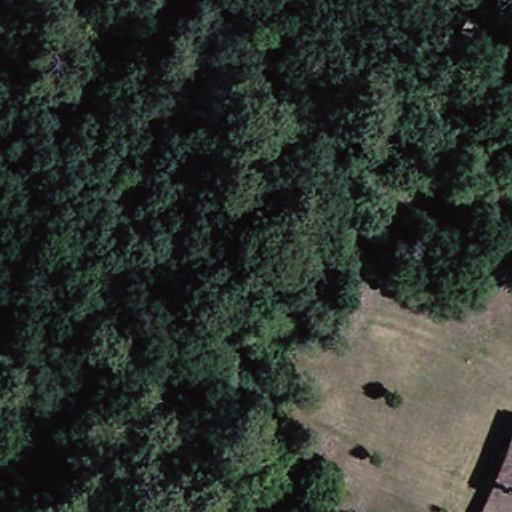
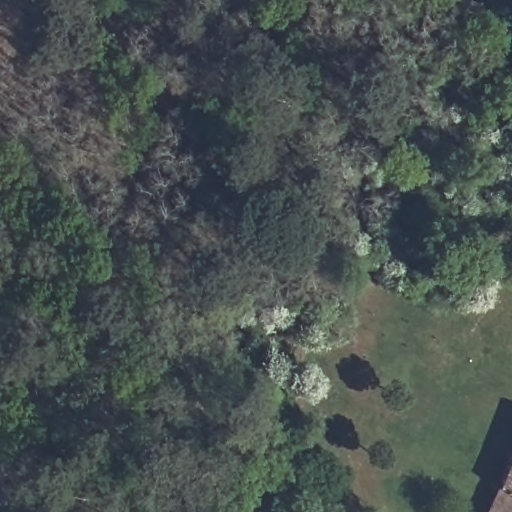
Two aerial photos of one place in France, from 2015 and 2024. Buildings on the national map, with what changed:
unchanged [(481,512),(512,446),(512,512),(481,512)]

